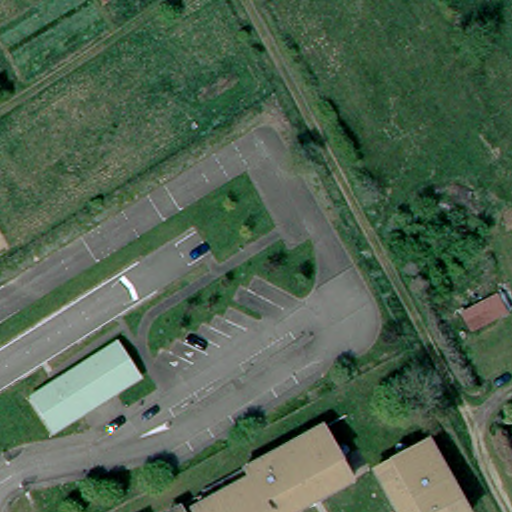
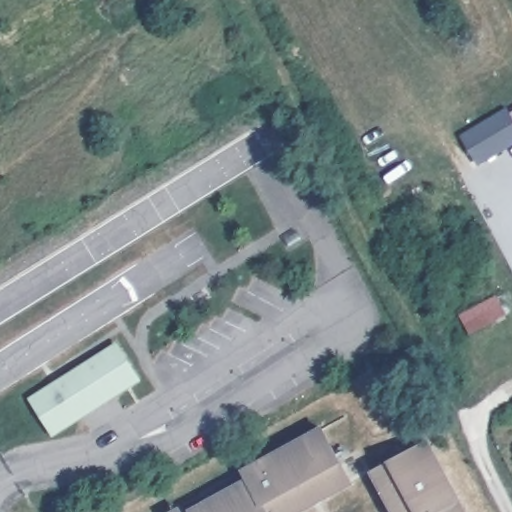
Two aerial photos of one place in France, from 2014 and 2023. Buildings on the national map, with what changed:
new [(478,166),(460,135),(508,107),(512,114),(512,146),(478,166)]
unchanged [(504,317),(467,335),(456,315),(494,297),(504,317)]
unchanged [(84,417),(82,415),(53,434),(32,402),(61,384),(59,382),(95,358),(97,361),(119,347),(140,378),(115,394),(117,397),(116,397),(85,417),(84,417)]
unchanged [(248,478),(243,469),(324,427),(351,482),(297,512),(193,512),(192,508),(248,478)]
unchanged [(468,512),(392,512),(371,476),(432,445),(468,512)]

